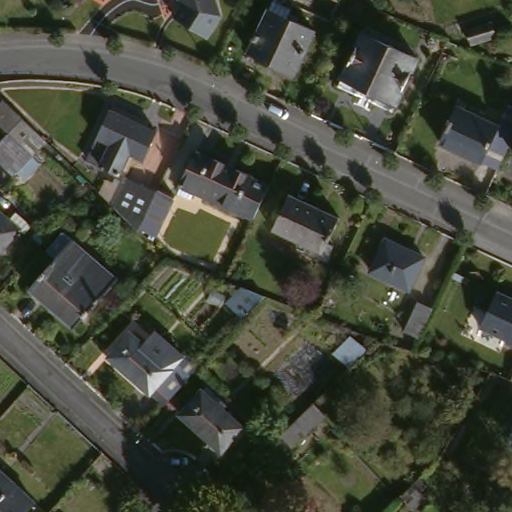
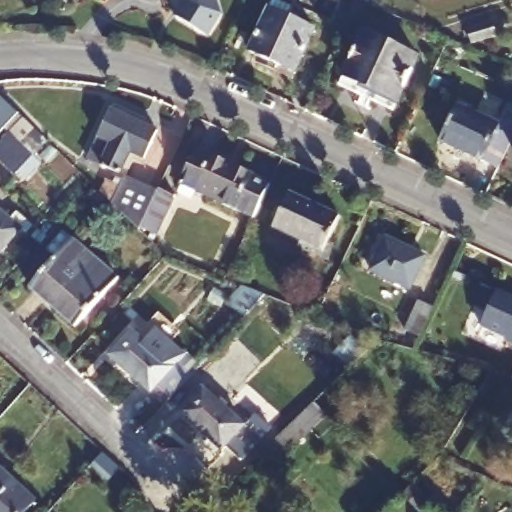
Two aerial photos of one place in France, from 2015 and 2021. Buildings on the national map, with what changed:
unchanged [(82,2),(81,0),(88,0),(82,2)]
unchanged [(227,20),(213,42),(182,21),(189,10),(187,0),(222,0),(227,20)]
unchanged [(292,78),(265,66),(254,61),(256,56),(249,52),(268,9),(271,3),(299,16),(296,22),(315,30),(292,78)]
unchanged [(496,24),(500,38),(477,46),(473,32),(496,24)]
unchanged [(359,101),(363,92),(368,83),(364,81),(360,90),(339,81),(364,27),(419,53),(395,106),(376,97),(380,89),(376,87),(373,96),(369,106),(359,101)]
unchanged [(0,171),(0,145),(6,138),(0,132),(0,105),(6,100),(46,143),(12,184),(0,171)]
unchanged [(454,106),(495,125),(478,162),(436,142),(454,106)]
unchanged [(128,166),(119,179),(118,182),(81,165),(108,110),(132,121),(141,125),(139,132),(151,137),(138,164),(136,170),(128,166)]
unchanged [(512,130),(512,132),(511,132),(512,130)]
unchanged [(176,186),(191,155),(206,162),(208,157),(266,184),(248,220),(176,186)]
unchanged [(166,196),(149,229),(139,224),(134,235),(105,208),(118,182),(119,179),(153,195),(155,190),(166,196)]
unchanged [(290,195),(341,219),(323,254),(273,230),(290,195)]
unchanged [(9,220),(16,213),(33,228),(26,236),(20,230),(0,253),(0,212),(9,220)]
unchanged [(44,273),(32,265),(57,237),(112,286),(71,333),(26,294),(44,273)]
unchanged [(383,245),(421,263),(406,295),(368,277),(383,245)]
unchanged [(507,340),(481,328),(498,292),(512,299),(512,345),(506,343),(507,340)]
unchanged [(404,330),(419,302),(434,309),(420,338),(404,330)]
unchanged [(168,404),(152,391),(150,393),(109,356),(131,332),(145,345),(156,333),(185,358),(198,370),(192,377),(177,394),(168,404)]
unchanged [(368,350),(348,376),(327,359),(351,337),(368,350)]
unchanged [(199,394),(207,401),(210,397),(224,410),(220,414),(240,433),(218,459),(176,419),(199,394)]
unchanged [(314,406),(327,419),(282,462),(269,450),(314,406)]
unchanged [(32,503),(24,512),(0,512),(0,472),(32,503)]

